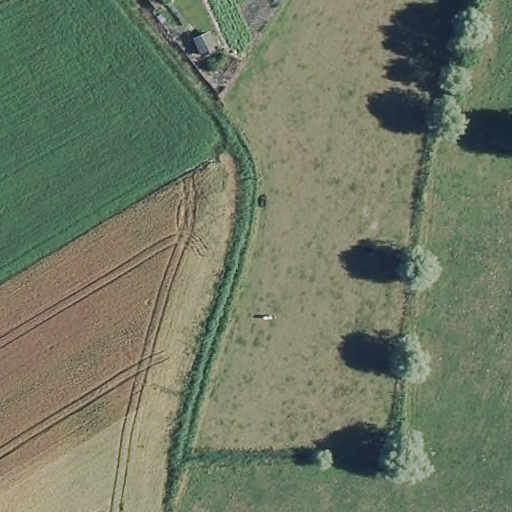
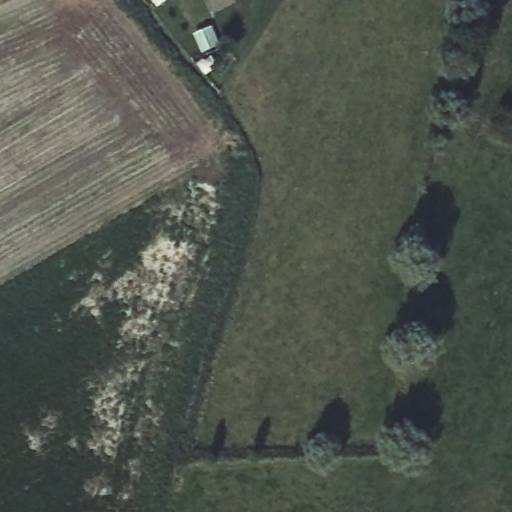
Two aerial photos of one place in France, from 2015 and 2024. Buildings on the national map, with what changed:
[]

